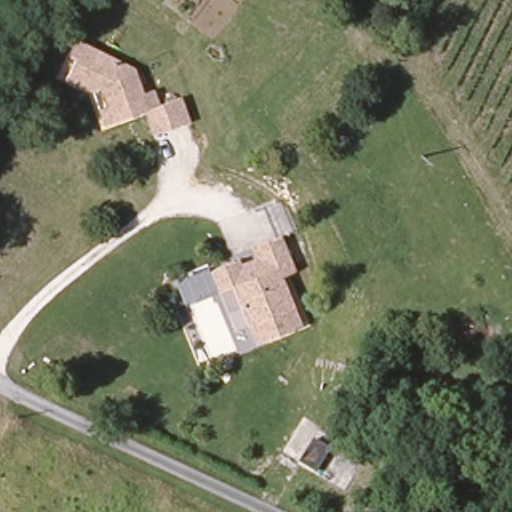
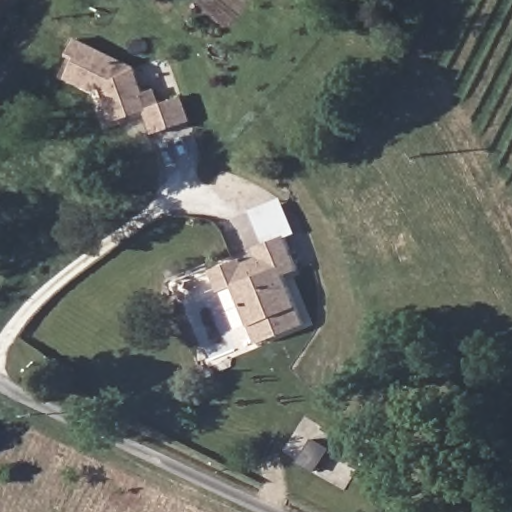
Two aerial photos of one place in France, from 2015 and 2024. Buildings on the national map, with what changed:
unchanged [(144,90),(156,86),(160,98),(176,93),(189,124),(155,136),(142,105),(112,117),(104,92),(99,84),(88,90),(66,78),(77,58),(70,54),(77,38),(135,64),(144,90)]
unchanged [(260,339),(235,282),(221,288),(212,268),(235,257),(240,267),(265,256),(258,241),(280,232),(295,265),(283,270),(305,319),(260,339)]

